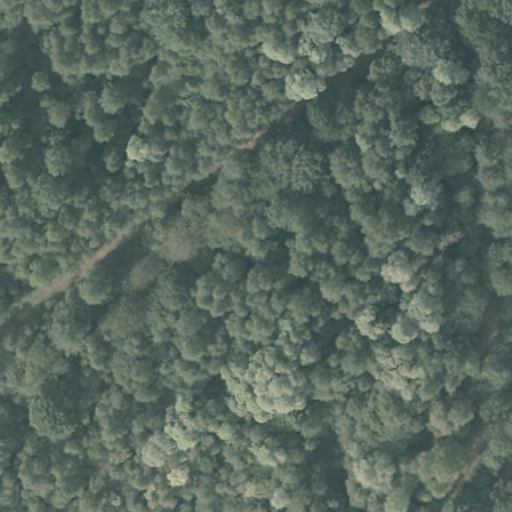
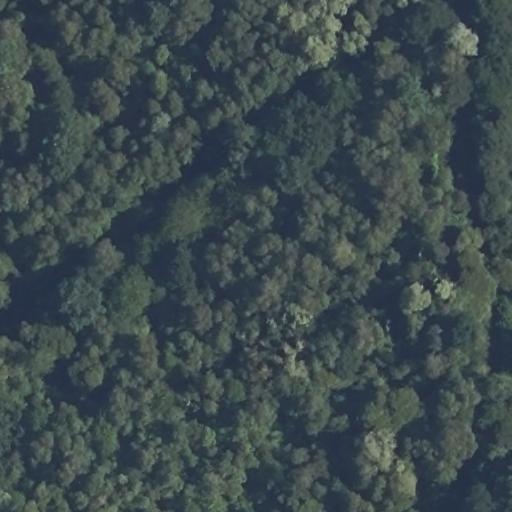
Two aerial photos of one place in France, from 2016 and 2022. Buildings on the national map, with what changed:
[]

